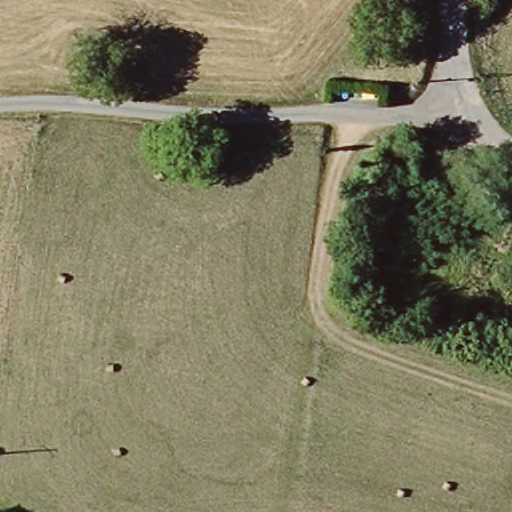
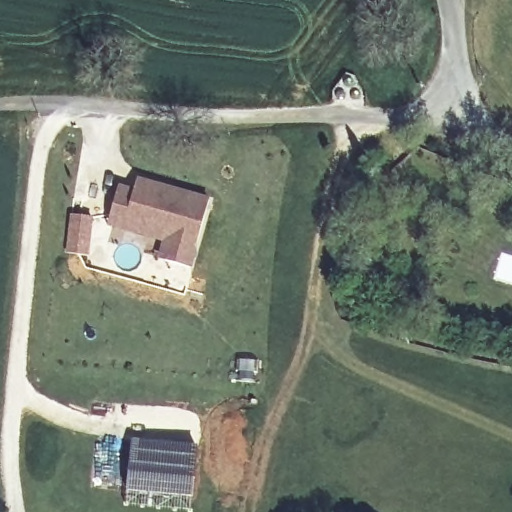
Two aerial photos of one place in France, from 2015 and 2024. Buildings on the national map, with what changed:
new [(210,198),(193,268),(158,259),(161,242),(108,226),(119,184),(135,187),(138,177),(210,198)]
new [(131,437),(197,443),(193,498),(125,491),(131,437)]

